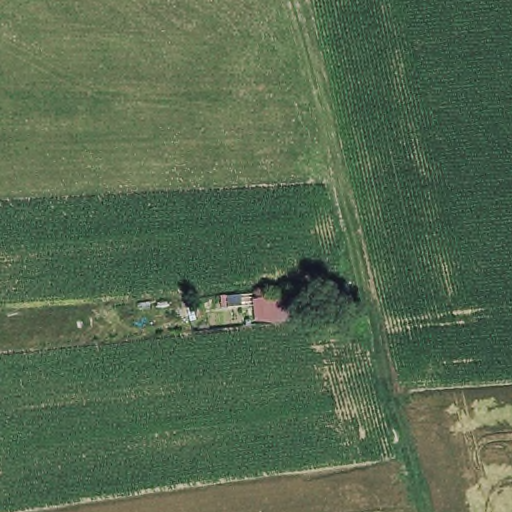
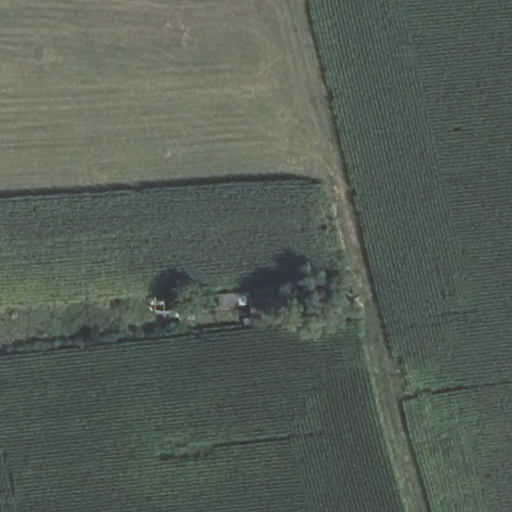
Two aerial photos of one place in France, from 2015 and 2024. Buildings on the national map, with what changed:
unchanged [(297,295),(303,312),(273,317),(268,296),(297,295)]

